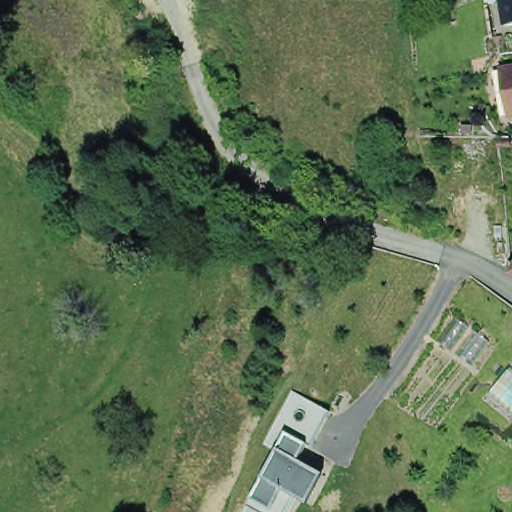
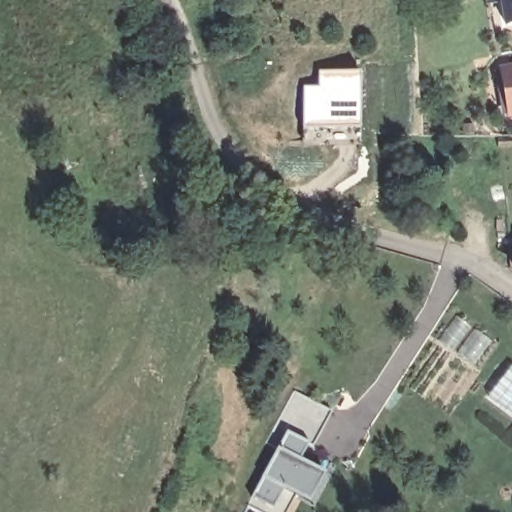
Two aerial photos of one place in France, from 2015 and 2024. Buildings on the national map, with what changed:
unchanged [(508,20),(504,0),(512,0),(512,19),(508,20)]
unchanged [(510,87),(506,66),(512,65),(512,100),(510,87)]
new [(357,130),(301,130),(301,90),(317,90),(317,74),(357,74),(357,130)]
unchanged [(486,391),(512,361),(512,413),(486,391)]
unchanged [(301,458),(326,473),(310,503),(297,496),(288,512),(260,512),(247,505),(252,496),(277,448),(265,442),(294,390),(332,411),(310,443),(301,458)]

